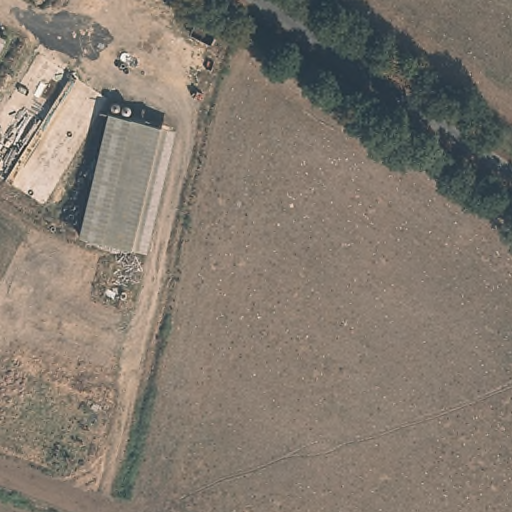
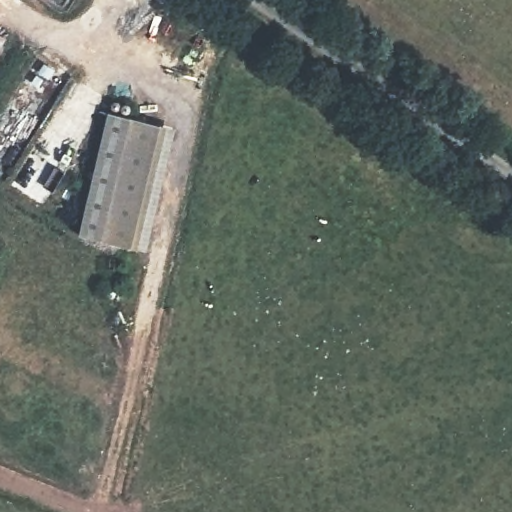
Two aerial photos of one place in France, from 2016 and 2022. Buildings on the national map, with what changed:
unchanged [(0,32),(7,37),(0,48),(0,32)]
unchanged [(176,127),(146,250),(78,232),(108,111),(176,127)]

